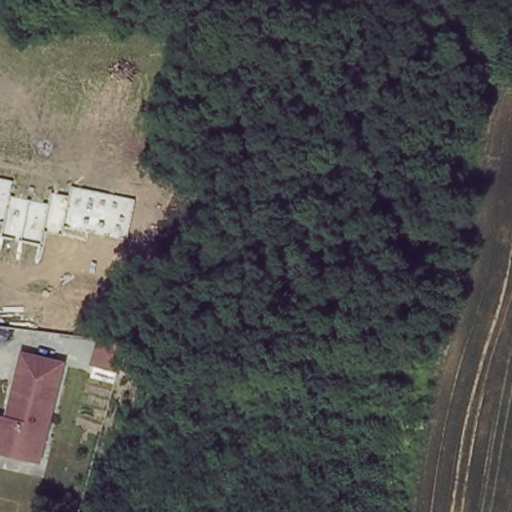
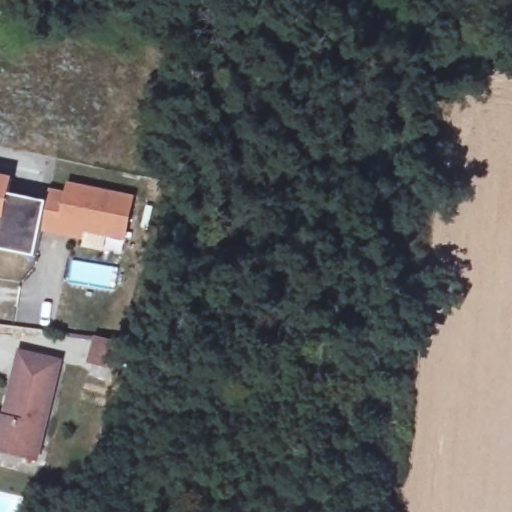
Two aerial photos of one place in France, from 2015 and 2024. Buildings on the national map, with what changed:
new [(0,223),(0,175),(16,179),(11,194),(48,202),(51,189),(66,192),(67,183),(135,196),(126,239),(83,232),(82,240),(42,232),(36,257),(0,250),(0,231),(2,224),(0,223)]
new [(125,339),(118,363),(93,361),(97,336),(125,339)]
unchanged [(61,360),(38,457),(0,448),(0,421),(5,422),(21,351),(61,360)]

